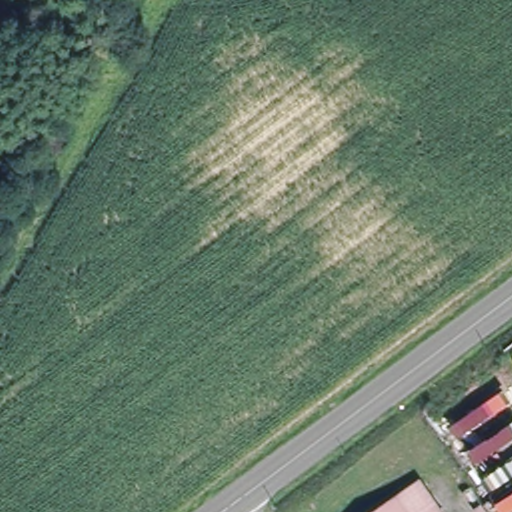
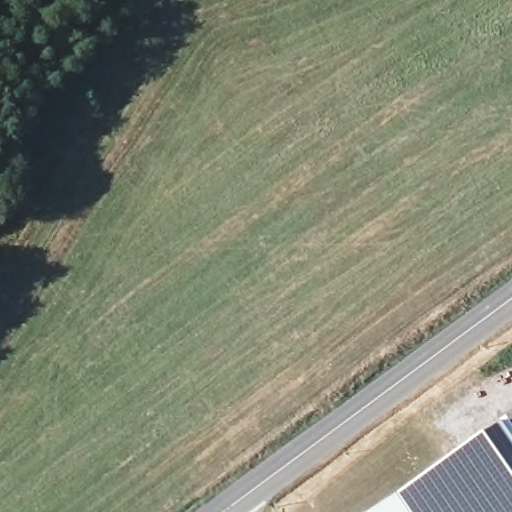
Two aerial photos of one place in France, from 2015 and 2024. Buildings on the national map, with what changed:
new [(506,418),(512,427),(512,512),(442,512),(419,479),(506,418)]
unchanged [(400,494),(419,479),(442,512),(411,512),(400,494)]
unchanged [(400,494),(411,512),(376,512),(400,494)]

